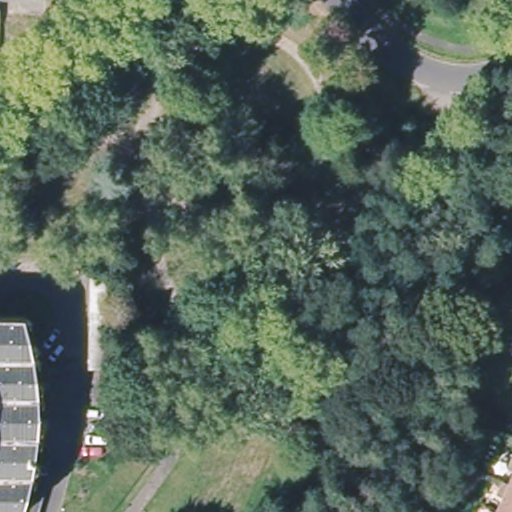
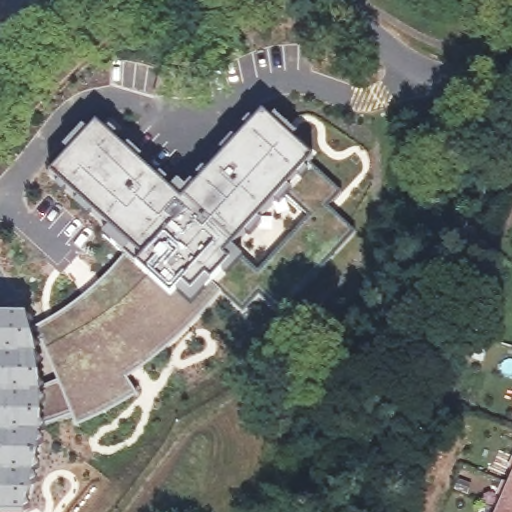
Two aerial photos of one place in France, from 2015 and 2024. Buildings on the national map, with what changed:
new [(181,199),(263,115),(313,159),(224,255),(231,263),(190,306),(139,265),(147,256),(53,172),(99,126),(181,199)]
new [(71,413),(54,420),(40,424),(41,410),(41,394),(41,386),(56,381),(35,330),(55,317),(72,306),(92,290),(111,271),(135,244),(147,256),(139,265),(190,306),(231,263),(224,255),(232,246),(256,270),(307,216),(282,192),(310,162),(341,191),(327,206),(353,229),(278,313),(258,294),(242,311),(221,290),(198,317),(177,338),(160,355),(145,365),(126,377),(138,394),(106,413),(76,426),(71,413)]
demolished [(100,287),(117,286),(117,322),(100,322),(100,287)]
unchanged [(25,299),(30,314),(34,330),(36,346),(39,362),(40,378),(41,394),(41,410),(40,426),(39,442),(36,457),(50,459),(40,508),(26,512),(0,512),(0,299),(25,299)]
unchanged [(501,491),(506,479),(512,482),(512,512),(501,512),(508,494),(501,491)]

